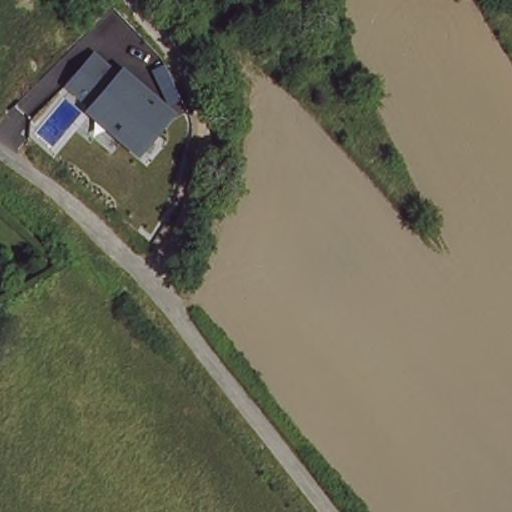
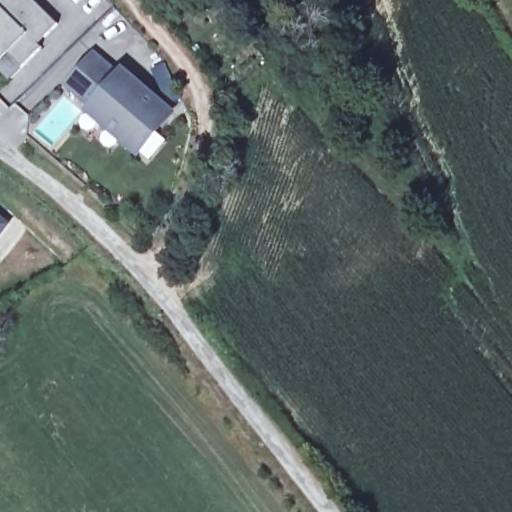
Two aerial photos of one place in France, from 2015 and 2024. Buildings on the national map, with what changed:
new [(30,0),(57,27),(45,40),(40,35),(33,42),(41,50),(21,71),(8,83),(0,75),(0,0),(30,0)]
unchanged [(83,114),(87,108),(65,89),(93,53),(119,71),(122,68),(176,114),(138,159),(83,114)]
new [(10,221),(0,234),(0,214),(10,221)]

